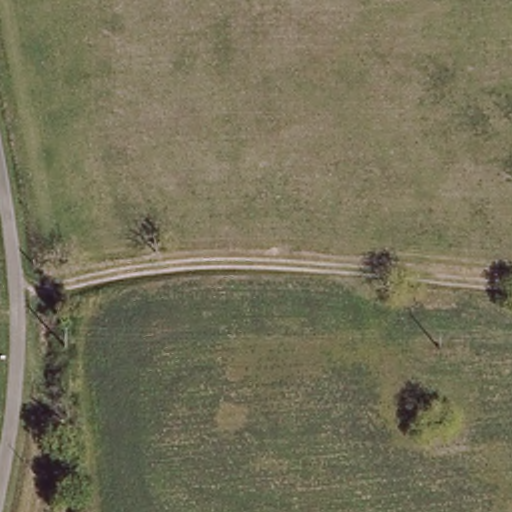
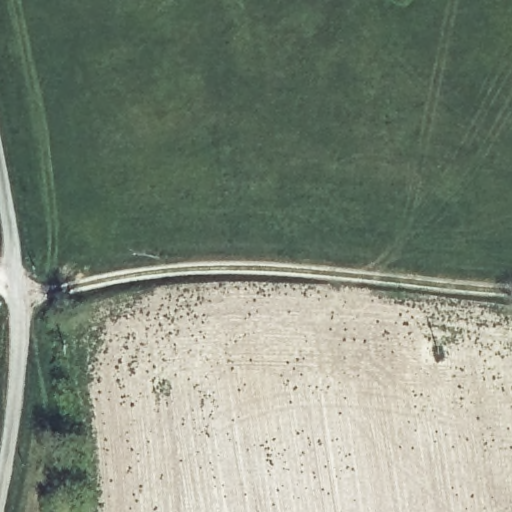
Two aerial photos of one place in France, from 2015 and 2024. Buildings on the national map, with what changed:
unchanged [(60,305),(62,305),(60,316),(49,315),(50,304),(60,305)]

